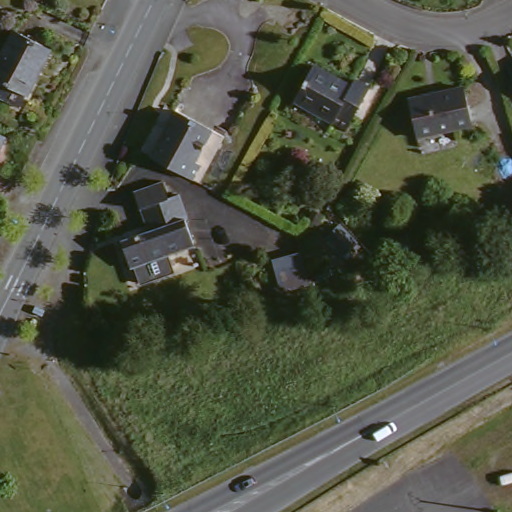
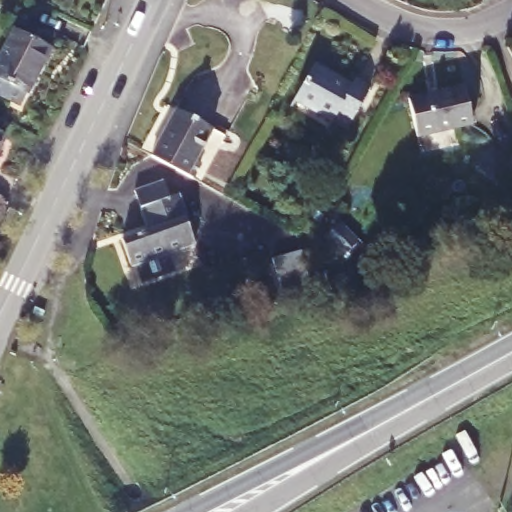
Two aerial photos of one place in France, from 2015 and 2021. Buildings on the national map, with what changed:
unchanged [(0,55),(8,41),(44,60),(22,103),(0,90),(0,55)]
unchanged [(293,104),(310,71),(346,89),(350,84),(366,93),(344,132),(293,104)]
unchanged [(414,141),(406,104),(458,91),(468,127),(414,141)]
unchanged [(196,164),(189,180),(146,158),(170,113),(206,131),(191,160),(196,164)]
unchanged [(193,246),(166,256),(172,274),(136,286),(123,244),(146,234),(133,196),(159,185),(166,203),(177,198),(193,246)]
unchanged [(283,294),(271,264),(299,255),(311,286),(283,294)]

